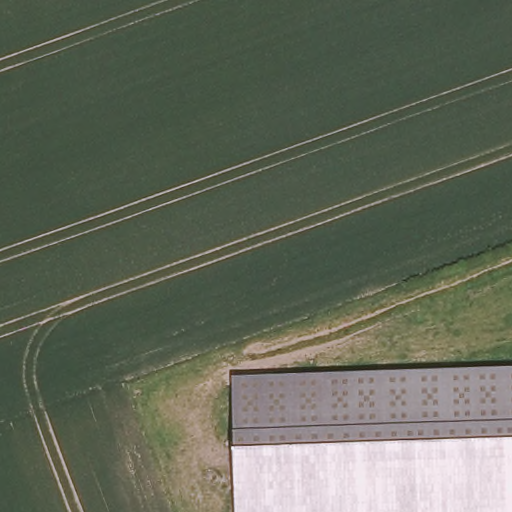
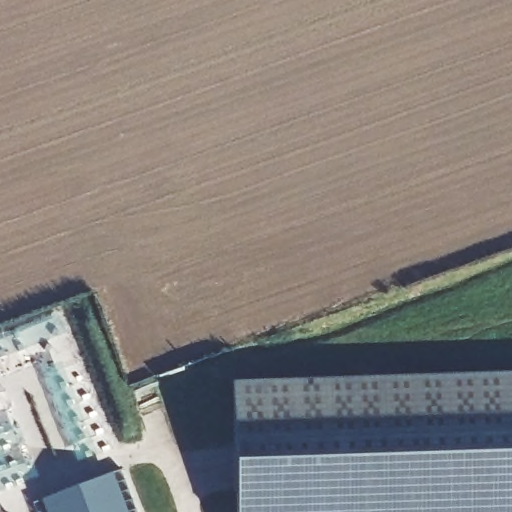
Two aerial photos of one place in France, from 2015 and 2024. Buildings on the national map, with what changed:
unchanged [(512,512),(237,512),(233,383),(512,371),(512,512)]
new [(136,512),(34,512),(31,504),(120,469),(136,512)]

